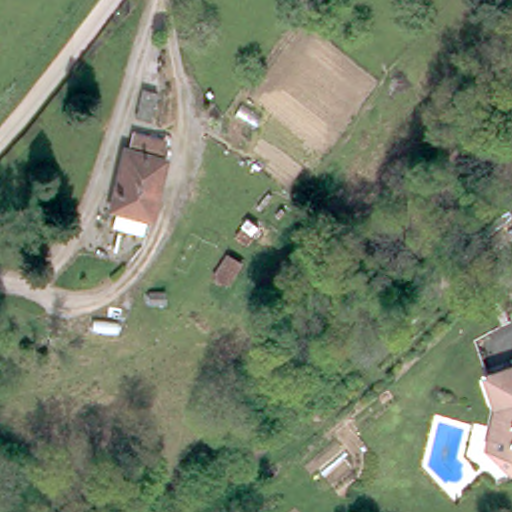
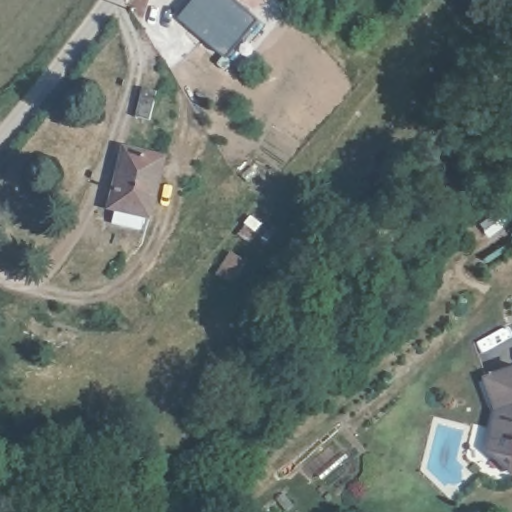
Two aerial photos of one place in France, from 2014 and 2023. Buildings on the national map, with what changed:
new [(179,18),(194,0),(236,0),(257,18),(266,26),(226,72),(217,65),(225,56),(179,18)]
unchanged [(110,229),(112,216),(106,214),(122,151),(125,152),(129,135),(161,143),(157,160),(162,162),(147,225),(141,224),(137,237),(110,229)]
unchanged [(485,368),(512,359),(512,463),(488,440),(499,402),(485,368)]

